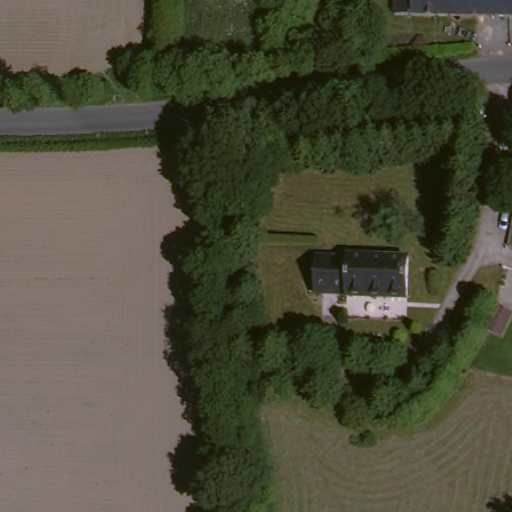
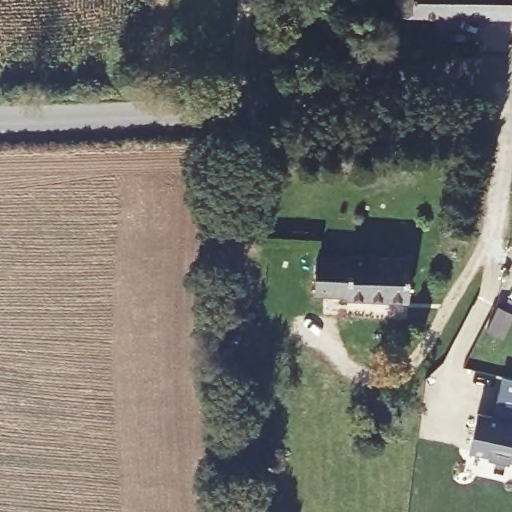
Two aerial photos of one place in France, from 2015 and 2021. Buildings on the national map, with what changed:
unchanged [(397,19),(398,0),(512,0),(512,20),(397,19)]
unchanged [(341,261),(342,257),(404,260),(404,300),(338,298),(338,294),(311,292),(312,259),(341,261)]
new [(512,420),(512,461),(468,450),(477,413),(512,420)]

